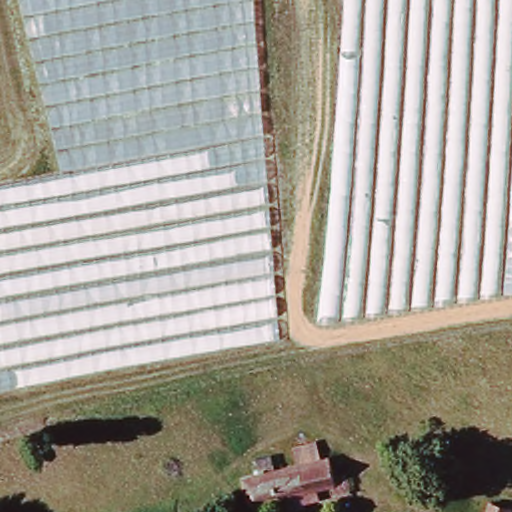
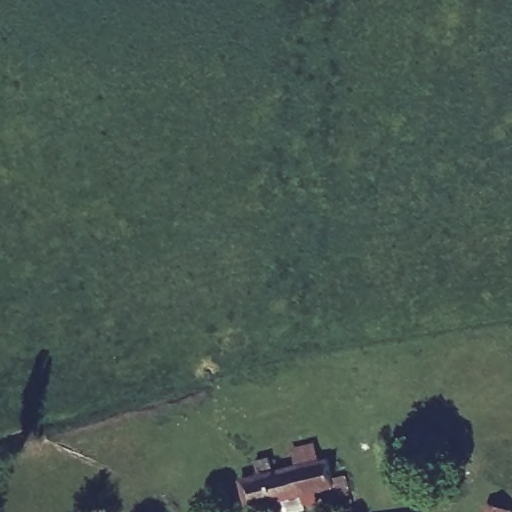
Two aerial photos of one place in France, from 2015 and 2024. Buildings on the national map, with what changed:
demolished [(512,0),(512,291),(317,322),(341,0),(512,0)]
demolished [(278,340),(0,393),(0,186),(259,136),(278,340)]
unchanged [(253,512),(244,512),(236,484),(255,479),(252,469),(266,465),(270,476),(324,462),(330,483),(340,482),(344,499),(327,504),(325,494),(253,512)]
unchanged [(353,512),(336,512),(335,507),(352,503),(353,512)]
unchanged [(490,504),(512,509),(511,512),(488,512),(490,504)]

